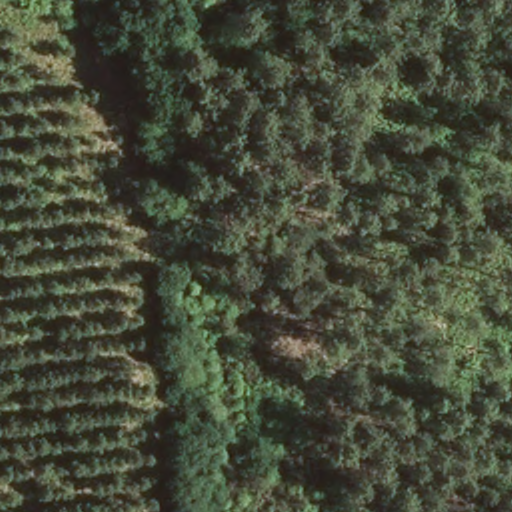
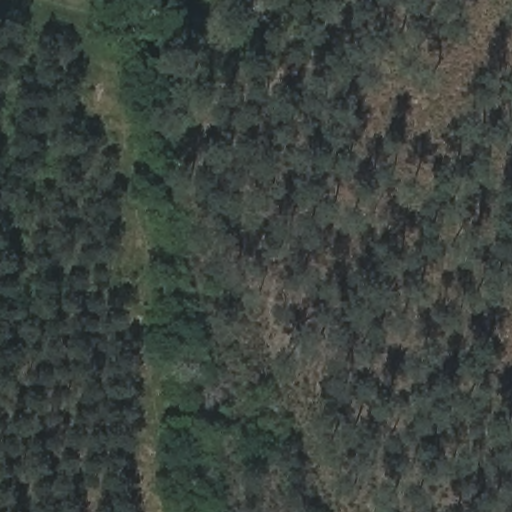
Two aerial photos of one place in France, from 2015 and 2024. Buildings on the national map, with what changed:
unchanged [(127,5),(104,11),(100,0),(125,0),(127,5)]

